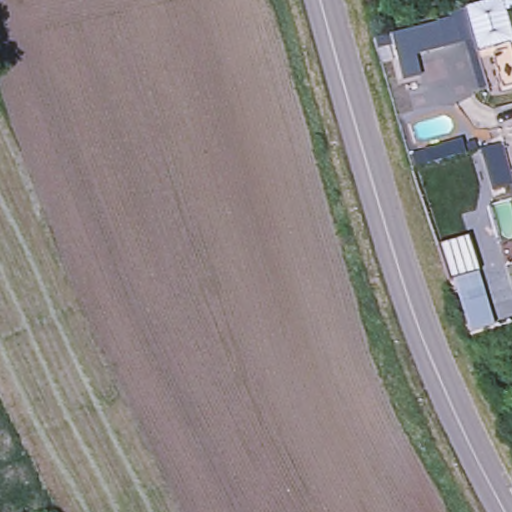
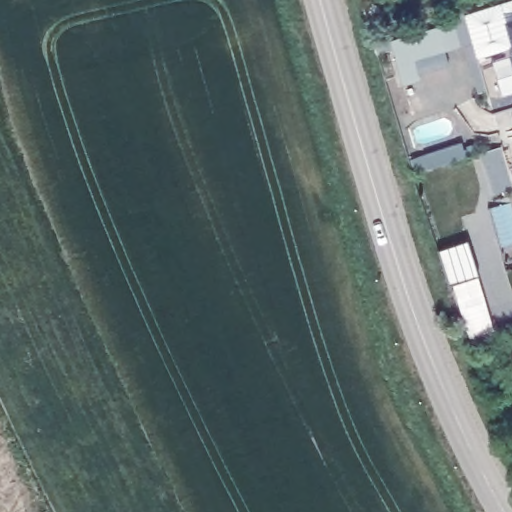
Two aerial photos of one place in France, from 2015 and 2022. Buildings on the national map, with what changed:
unchanged [(504,17),(512,15),(512,89),(501,92),(491,55),(512,47),(504,17)]
unchanged [(444,47),(414,57),(420,76),(402,81),(389,37),(437,24),(444,47)]

